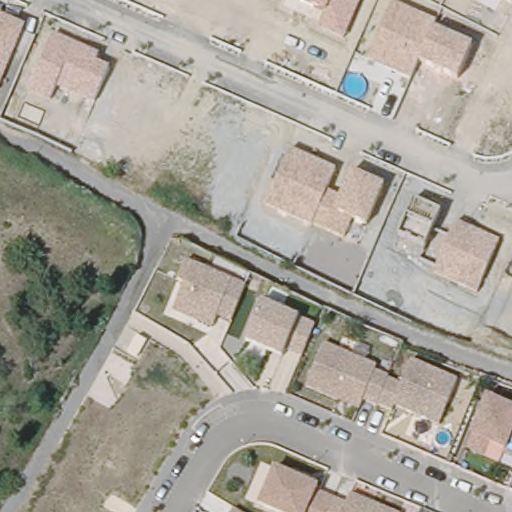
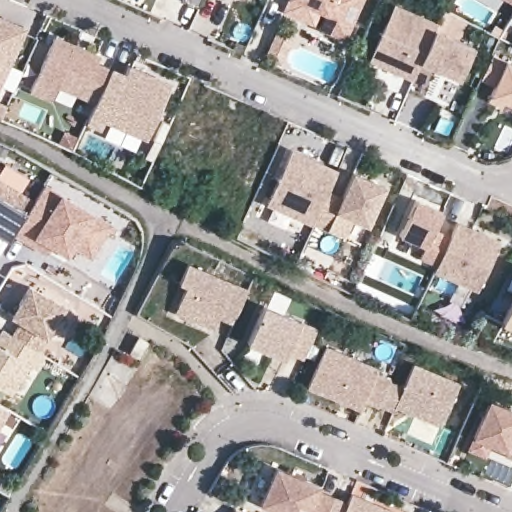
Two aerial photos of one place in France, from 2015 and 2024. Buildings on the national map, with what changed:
new [(198,8),(182,1),(182,0),(201,0),(198,8)]
unchanged [(318,30),(324,14),(293,0),(362,0),(344,41),(318,30)]
unchanged [(507,0),(512,0),(512,3),(507,0)]
unchanged [(393,6),(438,23),(436,31),(473,47),(459,81),(421,65),(413,82),(370,63),(393,6)]
unchanged [(0,85),(0,16),(25,27),(0,85)]
unchanged [(53,38),(100,55),(96,64),(108,68),(95,103),(56,89),(50,101),(30,92),(53,38)]
new [(493,99),(497,88),(484,83),(495,58),(512,66),(512,107),(493,99)]
new [(125,74),(128,67),(171,85),(146,141),(104,124),(100,132),(85,125),(95,103),(108,68),(125,74)]
new [(504,111),(490,105),(493,99),(506,105),(504,111)]
unchanged [(291,151),(336,170),(327,190),(341,196),(351,172),(383,185),(368,227),(351,219),(344,239),(311,228),(266,208),(291,151)]
new [(27,181),(18,196),(33,205),(12,238),(8,245),(0,240),(0,172),(3,166),(27,181)]
new [(33,205),(43,189),(110,231),(90,263),(71,251),(66,260),(51,250),(46,259),(12,238),(33,205)]
unchanged [(434,275),(438,266),(421,258),(425,249),(398,236),(415,201),(442,212),(435,229),(451,238),(457,223),(500,241),(479,293),(434,275)]
unchanged [(218,318),(216,323),(177,307),(185,287),(178,285),(186,265),(246,291),(240,306),(231,324),(218,318)]
new [(29,291),(63,312),(35,357),(11,341),(20,327),(10,320),(29,291)]
unchanged [(512,303),(512,331),(501,325),(512,303)]
unchanged [(286,352),(284,359),(246,343),(263,306),(316,328),(314,332),(303,358),(286,352)]
new [(11,341),(35,357),(41,361),(33,373),(25,368),(6,398),(0,394),(0,337),(1,335),(11,341)]
unchanged [(121,350),(126,341),(143,350),(138,359),(121,350)]
unchanged [(388,381),(388,382),(386,388),(378,405),(364,401),(360,410),(307,387),(325,346),(378,368),(376,373),(389,379),(388,381)]
unchanged [(386,388),(388,382),(403,387),(413,364),(459,384),(440,426),(395,407),(393,412),(378,405),(386,388)]
unchanged [(512,411),(512,459),(504,455),(505,452),(473,438),(488,401),(512,411)]
new [(0,432),(0,408),(10,415),(0,432)]
unchanged [(278,512),(260,504),(275,468),(318,486),(316,490),(333,498),(327,512),(278,512)]
unchanged [(342,512),(349,497),(383,512),(342,512)]
unchanged [(233,512),(235,509),(241,512),(233,512)]

